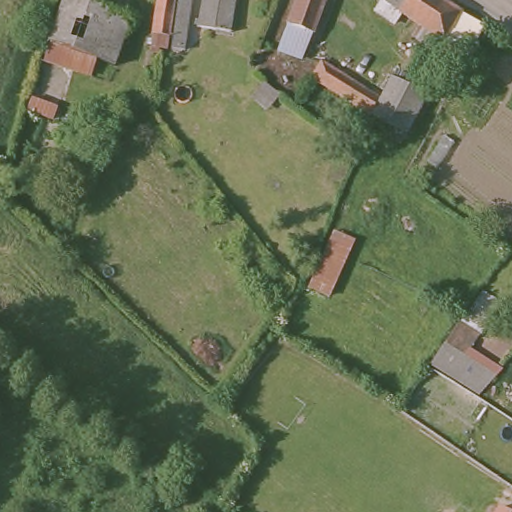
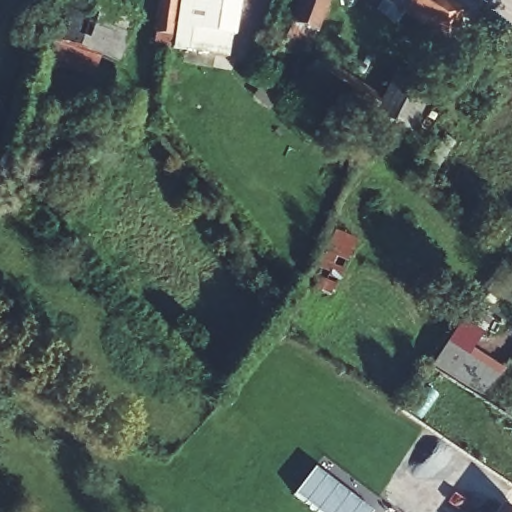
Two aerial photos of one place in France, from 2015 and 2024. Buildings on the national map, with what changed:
unchanged [(44,53),(50,36),(49,36),(60,0),(89,0),(128,14),(112,58),(97,53),(91,70),(44,53)]
unchanged [(166,47),(152,46),(159,0),(173,0),(166,47)]
unchanged [(178,0),(190,0),(181,57),(170,55),(178,0)]
unchanged [(201,0),(234,0),(230,29),(198,24),(201,0)]
unchanged [(294,0),(323,0),(298,57),(274,47),(294,0)]
unchanged [(400,13),(396,18),(387,12),(391,7),(380,0),(407,0),(400,13)]
unchanged [(400,13),(407,0),(436,0),(452,10),(462,17),(461,20),(485,32),(471,58),(465,55),(448,46),(400,13)]
unchanged [(386,98),(396,81),(428,97),(408,138),(376,122),(314,84),(326,64),(386,98)]
unchanged [(275,91),(263,106),(246,92),(258,77),(275,91)]
unchanged [(56,100),(52,112),(28,103),(32,92),(56,100)]
unchanged [(331,298),(312,288),(335,232),(360,243),(331,298)]
unchanged [(433,365),(448,345),(463,325),(482,338),(466,358),(492,377),(475,395),(433,365)]
new [(316,512),(294,495),(314,468),(371,512),(316,512)]
unchanged [(501,512),(502,510),(505,512),(501,512)]

